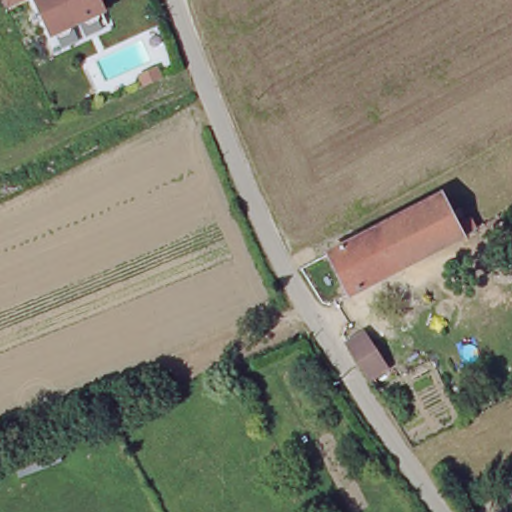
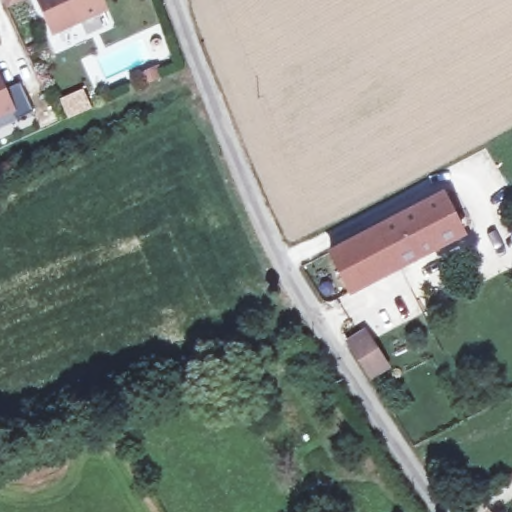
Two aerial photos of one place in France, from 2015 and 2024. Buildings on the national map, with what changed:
unchanged [(0,4),(0,3),(0,0),(11,0),(0,4)]
unchanged [(33,0),(93,0),(98,10),(48,32),(33,0)]
new [(19,82),(33,113),(14,121),(0,128),(0,79),(4,89),(19,82)]
unchanged [(469,211),(476,222),(352,287),(330,248),(441,187),(459,217),(469,211)]
unchanged [(346,337),(363,327),(385,361),(369,370),(346,337)]

